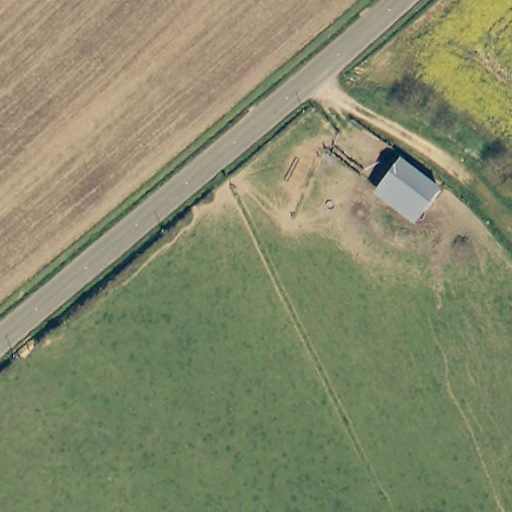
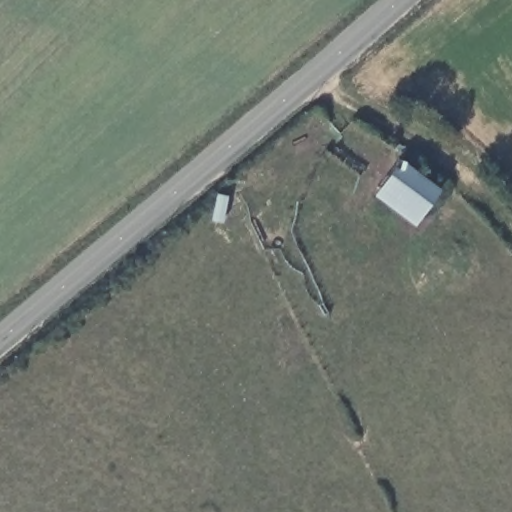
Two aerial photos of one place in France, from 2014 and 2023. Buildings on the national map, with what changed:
unchanged [(400,160),(439,191),(418,219),(378,189),(400,160)]

